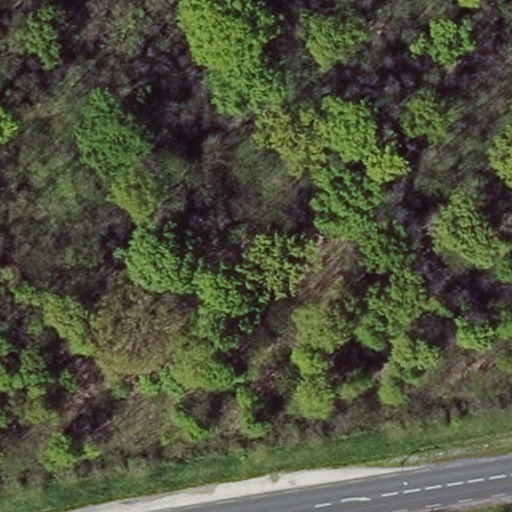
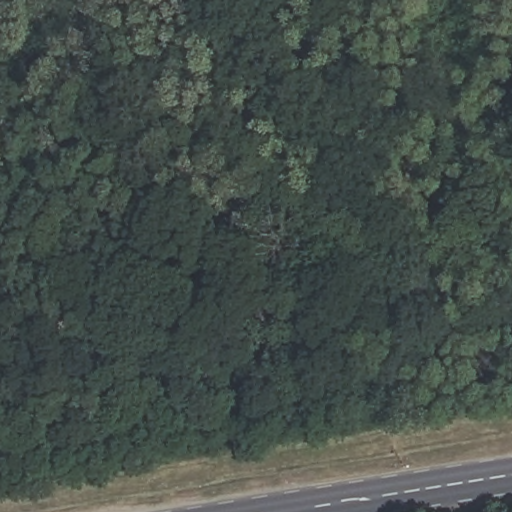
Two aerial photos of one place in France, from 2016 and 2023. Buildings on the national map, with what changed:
[]

